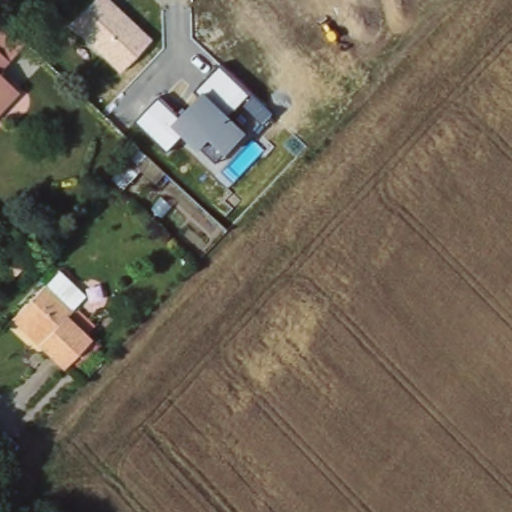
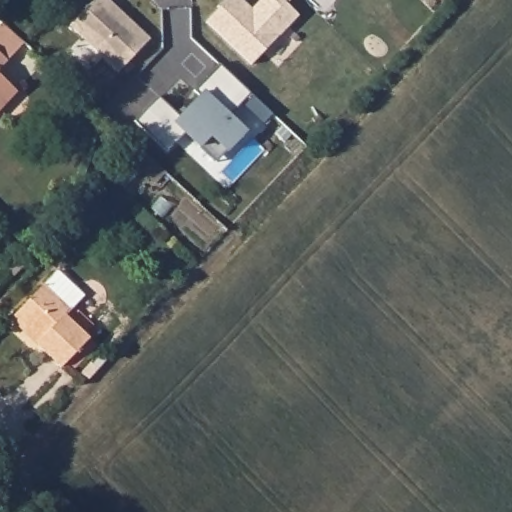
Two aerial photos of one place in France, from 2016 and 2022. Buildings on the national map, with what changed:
unchanged [(71,27),(96,0),(110,0),(151,39),(120,73),(71,27)]
new [(242,0),(252,10),(262,0),(288,0),(285,2),(299,15),(252,65),(207,22),(228,0),(242,0)]
unchanged [(7,58),(0,64),(0,51),(7,58)]
unchanged [(271,113),(262,121),(242,101),(230,114),(249,131),(227,153),(225,150),(217,160),(202,147),(199,150),(184,135),(169,151),(137,121),(159,96),(180,116),(201,95),(195,90),(219,65),(271,113)]
unchanged [(3,108),(0,111),(0,71),(5,76),(21,90),(3,108)]
unchanged [(13,312),(51,271),(78,296),(57,318),(83,343),(58,368),(31,343),(6,320),(13,312)]

